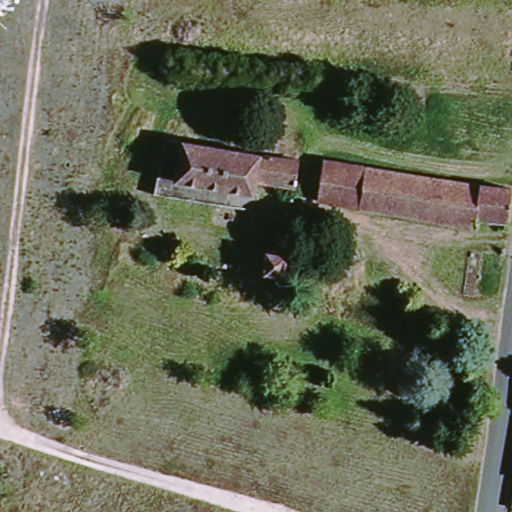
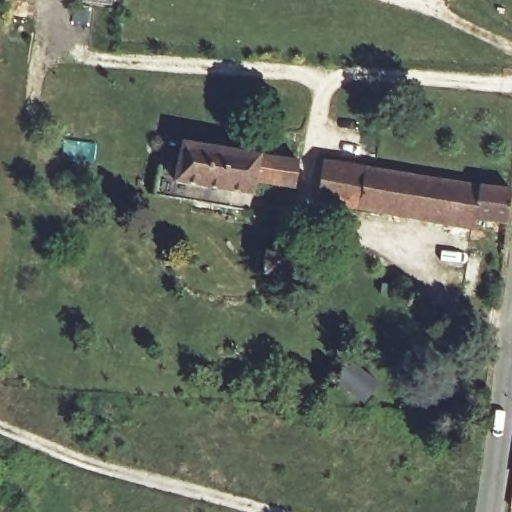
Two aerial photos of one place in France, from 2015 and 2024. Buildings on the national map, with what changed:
unchanged [(279,162),(288,164),(286,186),(253,182),(250,196),(176,187),(181,149),(251,156),(261,147),(280,150),(279,162)]
unchanged [(468,224),(466,231),(318,196),(328,162),(505,202),(501,230),(468,224)]
unchanged [(286,254),(282,281),(261,277),(265,252),(286,254)]

